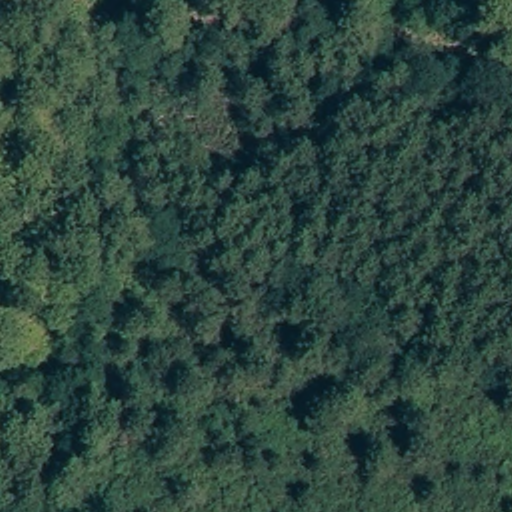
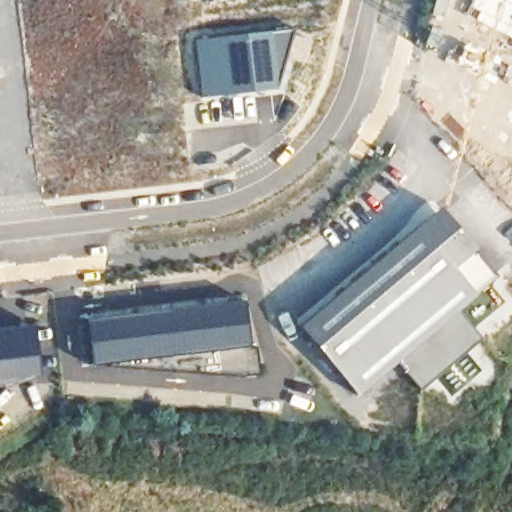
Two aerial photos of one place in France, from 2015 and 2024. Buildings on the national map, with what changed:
new [(512,0),(512,39),(465,15),(472,0),(512,0)]
new [(292,28),(285,68),(281,91),(197,99),(191,38),(292,28)]
new [(370,258),(437,208),(494,277),(457,310),(481,339),(473,346),(468,350),(432,381),(419,392),(395,364),(355,397),(322,360),(292,322),(370,258)]
new [(243,301),(248,345),(248,350),(256,349),(259,375),(240,377),(112,366),(110,362),(90,365),(84,319),(243,301)]
new [(30,324),(37,375),(0,385),(0,328),(30,324)]
new [(468,350),(484,371),(450,402),(432,381),(468,350)]

